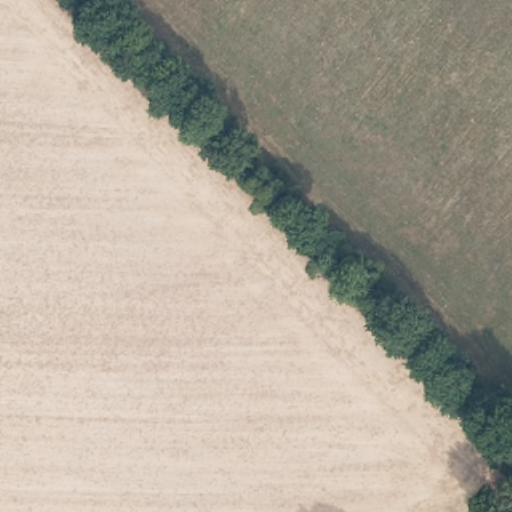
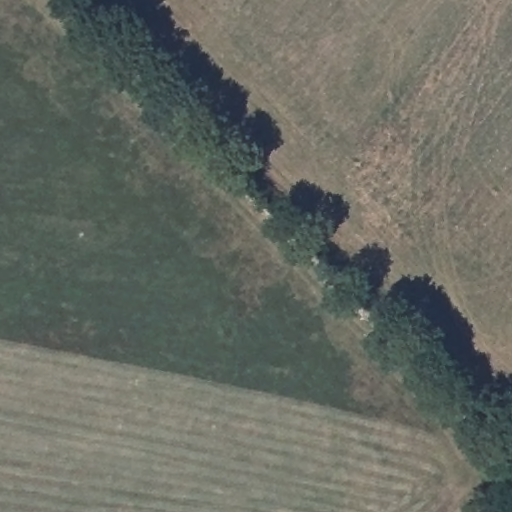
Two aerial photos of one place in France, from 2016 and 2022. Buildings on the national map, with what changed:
[]

